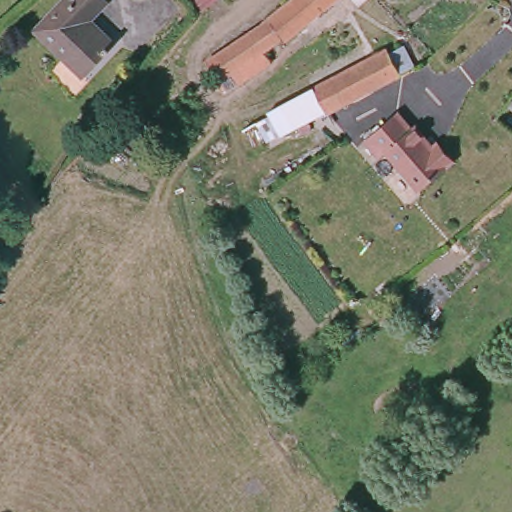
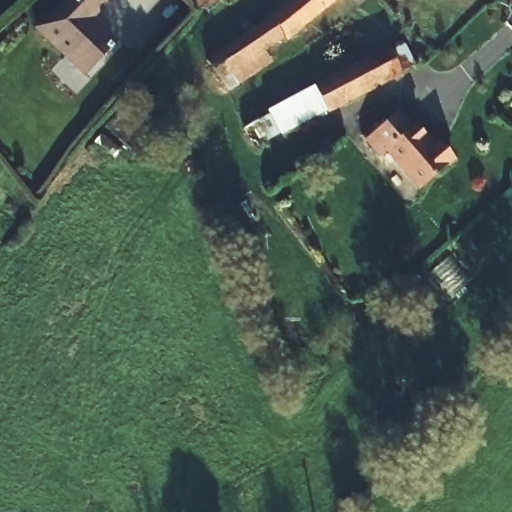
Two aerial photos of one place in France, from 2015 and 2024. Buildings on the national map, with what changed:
unchanged [(108,38),(76,72),(30,29),(57,0),(101,0),(103,2),(86,19),(108,38)]
unchanged [(204,19),(186,0),(225,0),(204,19)]
unchanged [(279,52),(274,46),(256,59),(261,70),(218,97),(199,64),(261,29),(291,0),(331,0),(279,52)]
unchanged [(321,112),(244,155),(233,135),(265,117),(262,111),(378,47),(383,53),(396,45),(409,67),(345,103),(323,116),(321,112)]
unchanged [(506,109),(512,98),(512,113),(506,109)]
unchanged [(411,132),(415,127),(448,160),(418,190),(381,155),(375,161),(360,144),(394,114),(411,132)]

